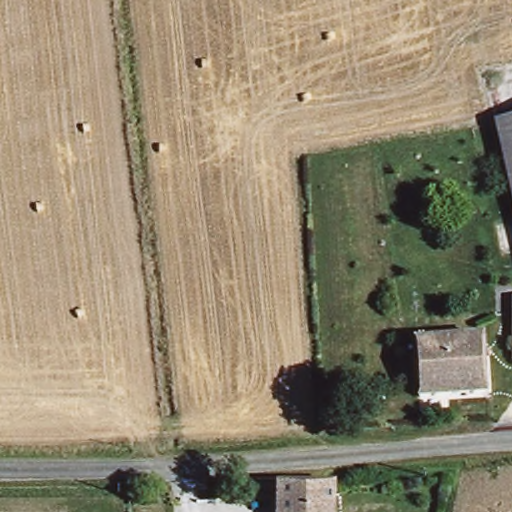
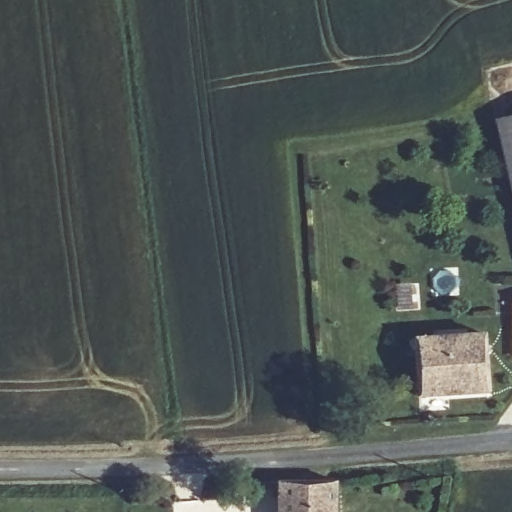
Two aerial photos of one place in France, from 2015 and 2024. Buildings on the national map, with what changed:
unchanged [(512,114),(512,192),(493,118),(512,114)]
unchanged [(510,355),(511,293),(512,293),(512,355),(510,355)]
unchanged [(418,389),(415,331),(481,327),(485,386),(418,389)]
unchanged [(334,512),(276,512),(276,488),(275,480),(333,477),(334,512)]

